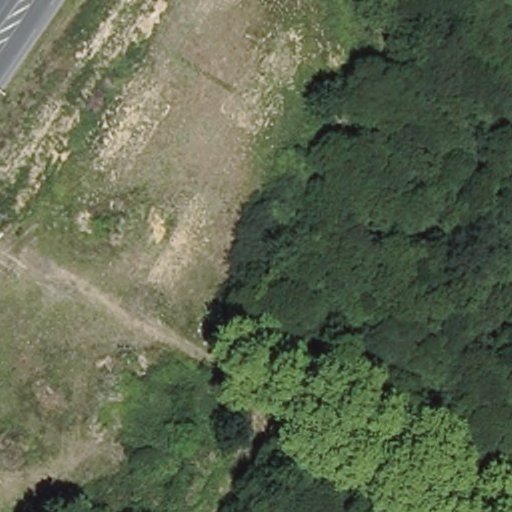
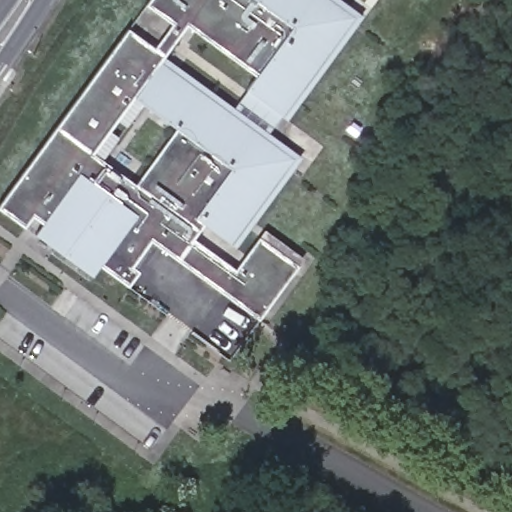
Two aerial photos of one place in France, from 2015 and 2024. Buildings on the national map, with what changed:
new [(0,210),(0,205),(128,28),(155,48),(173,24),(146,4),(150,0),(342,0),(363,16),(274,136),(303,157),(236,247),(204,224),(194,239),(236,269),(265,230),(304,256),(260,320),(159,247),(130,287),(101,267),(93,277),(0,210)]

